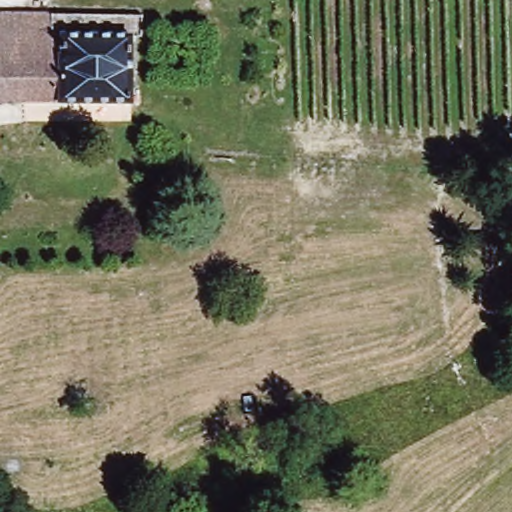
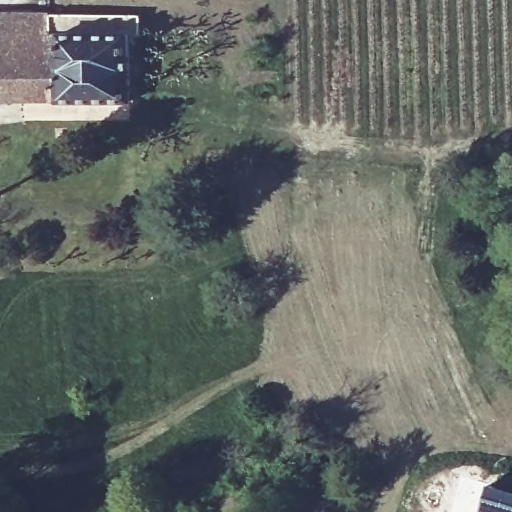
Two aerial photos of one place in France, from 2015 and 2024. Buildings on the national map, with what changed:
unchanged [(149,19),(150,37),(136,37),(136,105),(0,102),(0,13),(110,17),(149,19)]
new [(512,490),(512,512),(482,512),(490,483),(512,490)]

